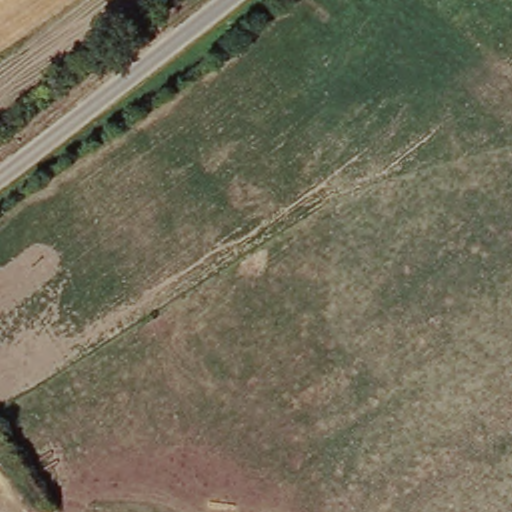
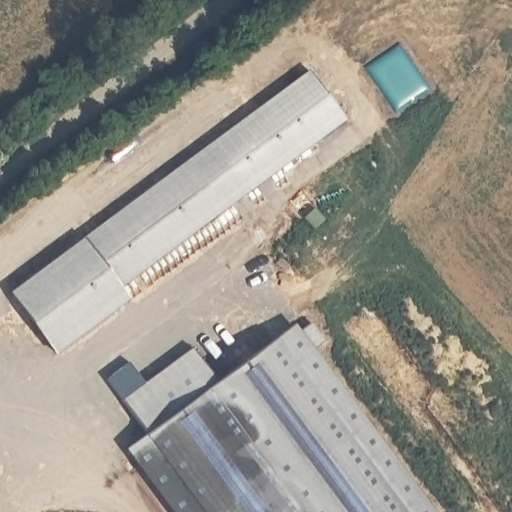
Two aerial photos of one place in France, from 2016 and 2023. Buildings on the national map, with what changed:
new [(306,75),(343,125),(118,293),(126,304),(53,359),(8,298),(306,75)]
new [(292,331),(296,337),(308,328),(322,347),(310,357),(426,512),(167,512),(125,455),(145,439),(215,388),(292,331)]
new [(190,354),(215,388),(145,439),(119,406),(190,354)]

